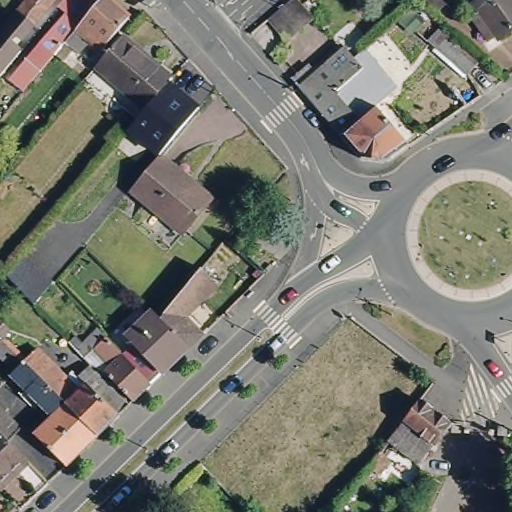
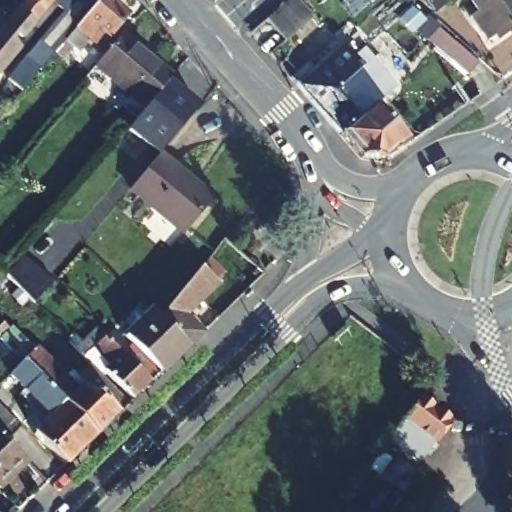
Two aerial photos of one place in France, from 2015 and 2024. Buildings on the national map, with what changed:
unchanged [(16,8),(23,0),(52,0),(23,36),(16,30),(4,42),(17,52),(1,72),(0,71),(0,27),(9,15),(16,8)]
unchanged [(81,19),(23,86),(11,76),(68,7),(60,1),(61,0),(100,0),(83,20),(81,19)]
unchanged [(100,0),(119,0),(133,12),(105,46),(93,35),(81,49),(75,44),(65,56),(57,51),(83,20),(100,0)]
unchanged [(296,0),(311,19),(283,42),(265,20),(289,0),(296,0)]
unchanged [(438,0),(442,5),(432,14),(419,0),(438,0)]
unchanged [(502,26),(499,22),(491,27),(474,4),(480,0),(512,0),(512,19),(502,26)]
unchanged [(146,105),(98,62),(124,31),(174,72),(168,80),(179,90),(163,110),(151,100),(146,105)]
unchanged [(427,42),(436,31),(476,65),(467,76),(427,42)]
unchanged [(366,64),(339,87),(393,152),(386,157),(364,155),(351,140),(302,85),(301,82),(348,42),(357,52),(366,64)]
unchanged [(393,152),(339,87),(366,64),(357,52),(365,45),(398,86),(379,102),(410,140),(393,152)]
unchanged [(180,125),(170,116),(184,99),(194,107),(180,125)]
unchanged [(156,198),(133,180),(163,144),(193,170),(189,174),(211,192),(186,223),(173,239),(143,215),(156,198)]
unchanged [(188,318),(204,335),(192,347),(163,318),(204,269),(221,285),(188,318)]
unchanged [(140,348),(128,336),(155,310),(163,318),(192,347),(153,384),(129,358),(140,348)]
unchanged [(132,405),(98,368),(71,342),(78,335),(86,342),(100,328),(129,358),(153,384),(132,405)]
unchanged [(32,367),(51,387),(100,435),(68,466),(37,435),(55,416),(13,375),(17,372),(0,356),(0,344),(4,341),(25,361),(32,367)]
unchanged [(100,435),(51,387),(32,367),(53,347),(86,381),(98,368),(132,405),(100,435)]
unchanged [(419,459),(389,435),(404,413),(419,395),(447,416),(450,418),(419,459)]
unchanged [(0,406),(18,423),(6,436),(26,456),(0,482),(0,406)]
unchanged [(380,446),(391,455),(379,471),(368,462),(380,446)]

